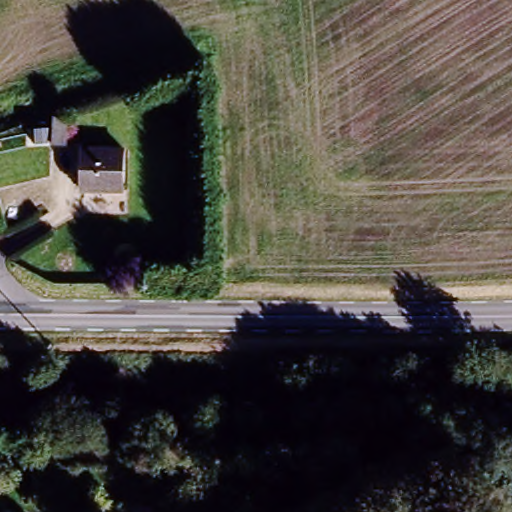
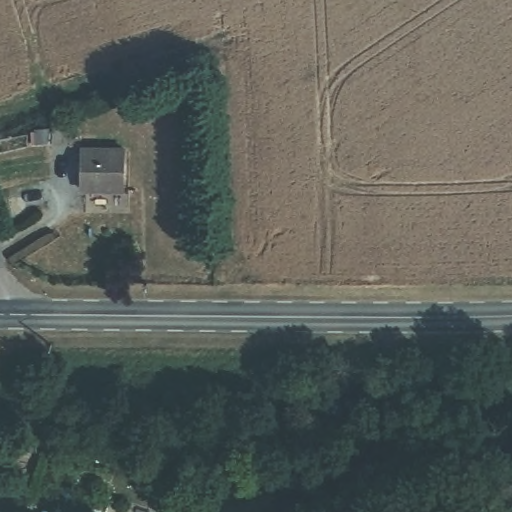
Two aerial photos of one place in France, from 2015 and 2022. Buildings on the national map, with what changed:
unchanged [(127,149),(125,183),(79,182),(80,147),(127,149)]

